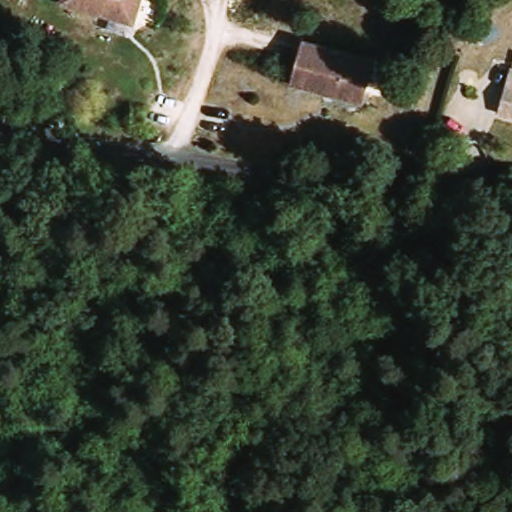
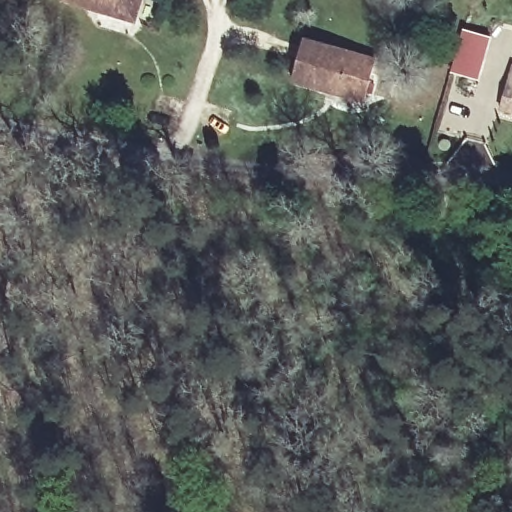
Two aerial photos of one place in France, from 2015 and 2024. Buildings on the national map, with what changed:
unchanged [(136,25),(65,2),(65,0),(144,0),(136,25)]
new [(479,81),(450,73),(463,30),(491,38),(479,81)]
unchanged [(368,106),(294,88),(305,47),(379,65),(368,106)]
unchanged [(504,123),(507,92),(509,79),(512,79),(512,123),(504,123)]

